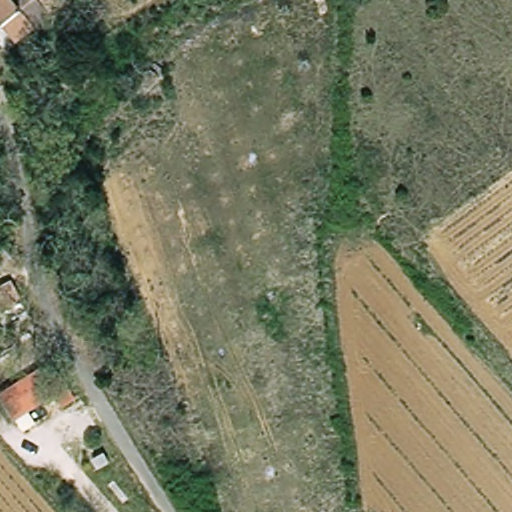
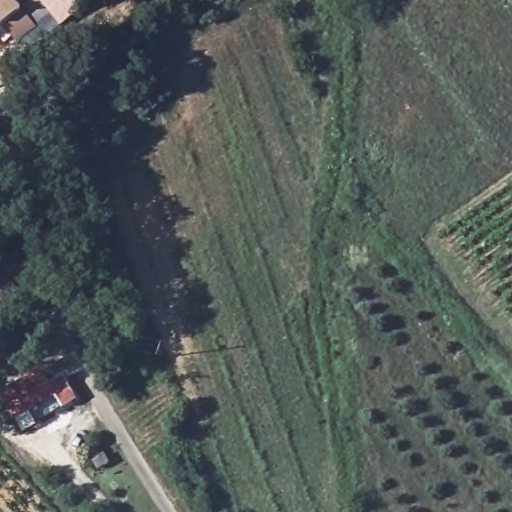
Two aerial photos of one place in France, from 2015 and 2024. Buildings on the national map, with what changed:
unchanged [(10,41),(0,27),(0,0),(40,0),(50,15),(10,41)]
unchanged [(12,279),(25,300),(8,310),(0,297),(0,286),(12,279)]
unchanged [(41,367),(57,392),(15,415),(0,390),(0,389),(41,367)]

